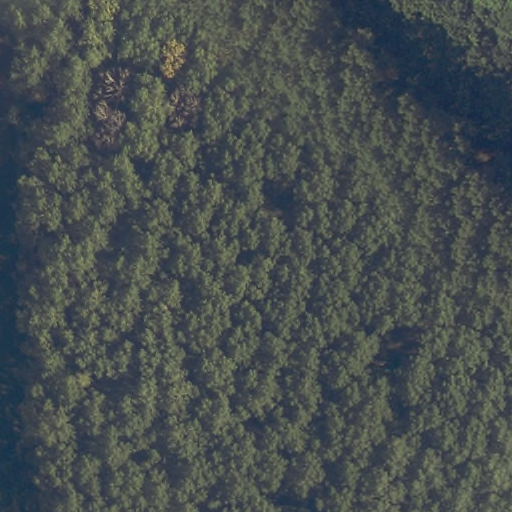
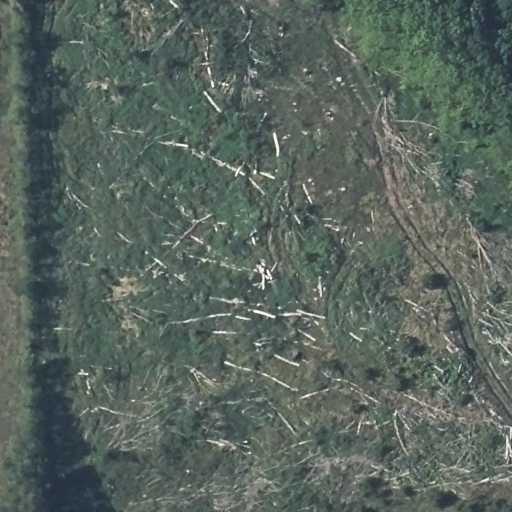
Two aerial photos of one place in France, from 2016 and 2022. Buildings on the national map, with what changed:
[]

